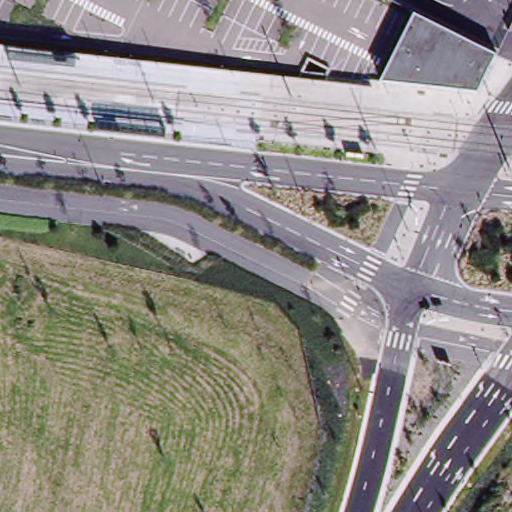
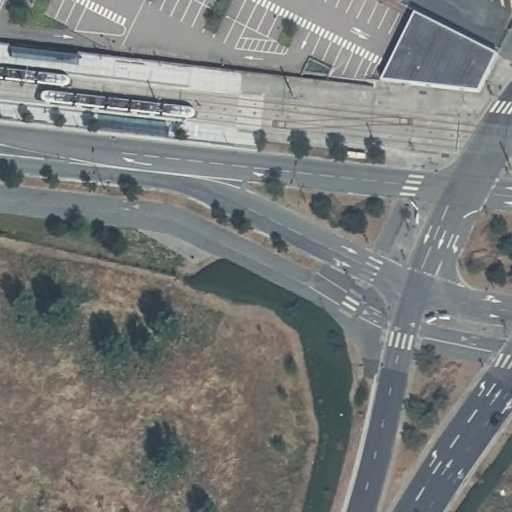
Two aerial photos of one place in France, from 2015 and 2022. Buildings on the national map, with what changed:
unchanged [(497,57),(478,95),(382,81),(415,15),(497,57)]

